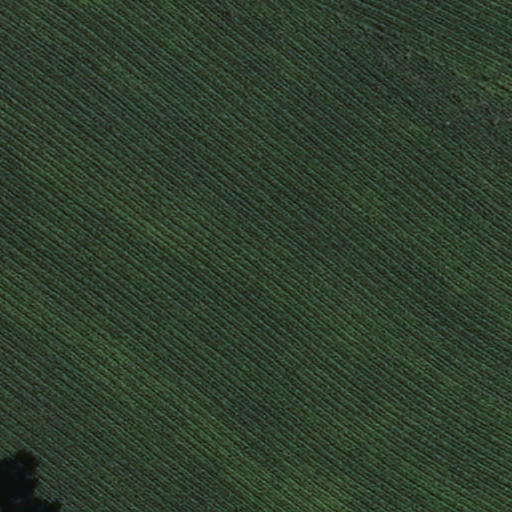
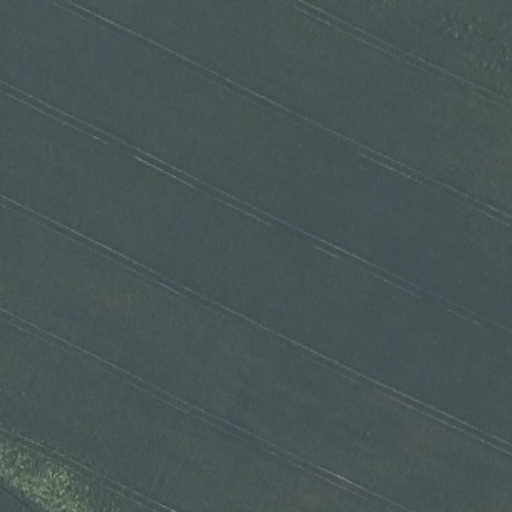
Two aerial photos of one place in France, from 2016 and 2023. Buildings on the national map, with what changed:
[]

